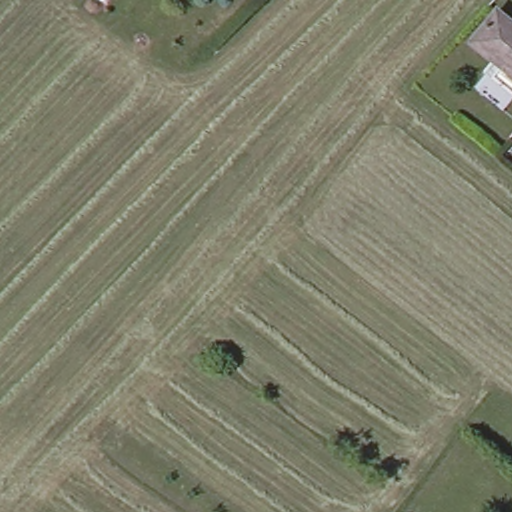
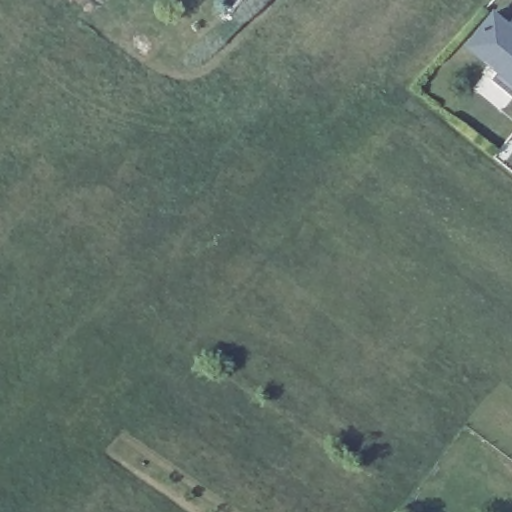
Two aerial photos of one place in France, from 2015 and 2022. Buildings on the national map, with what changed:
unchanged [(491,76),(499,66),(468,41),(494,10),(512,25),(512,94),(491,76)]

